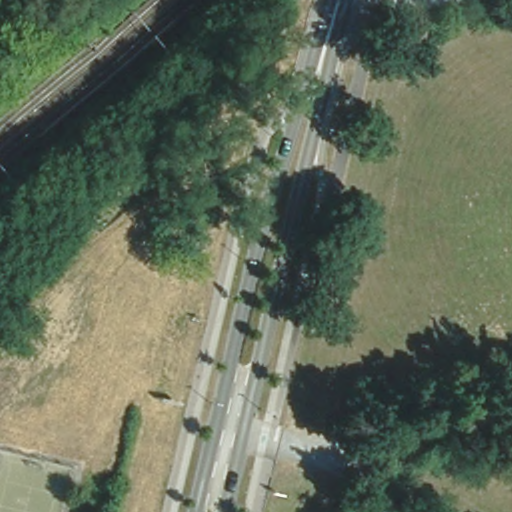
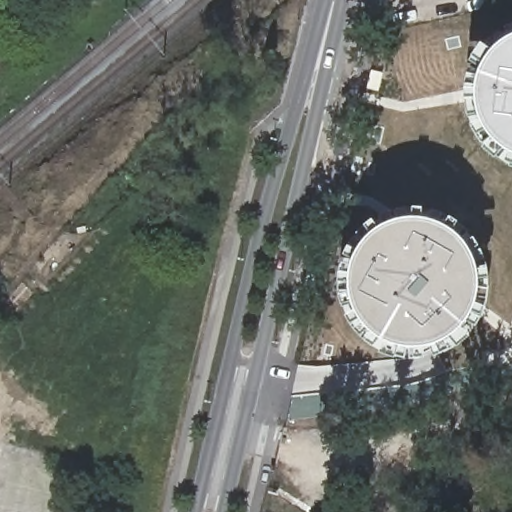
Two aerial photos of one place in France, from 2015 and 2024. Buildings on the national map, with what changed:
new [(480,124),(476,113),(474,102),(474,91),(476,80),(479,69),(485,59),(492,50),(500,43),(510,37),(512,36),(512,154),(502,149),(494,142),(486,133),(480,124)]
new [(458,235),(466,243),(472,253),(477,264),(479,275),(480,286),(478,298),(475,309),(469,319),(462,328),(454,335),(444,342),(434,346),(422,348),(411,349),(400,347),(389,344),(379,339),(370,332),(362,323),(356,314),(351,303),(349,292),(348,280),(350,269),(353,258),(359,248),(366,239),(374,231),(384,225),(394,221),(405,218),(417,218),(428,219),(439,223),(449,228),(458,235)]

